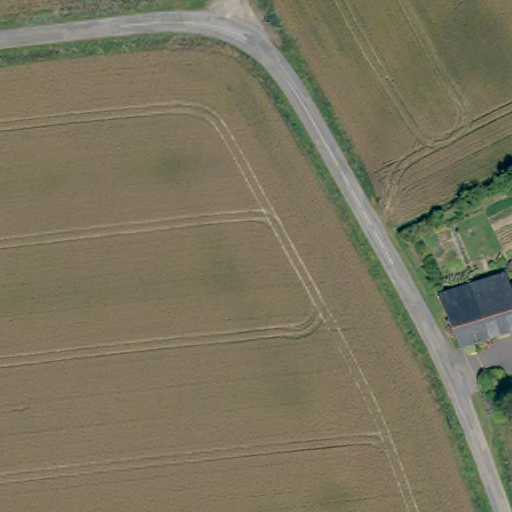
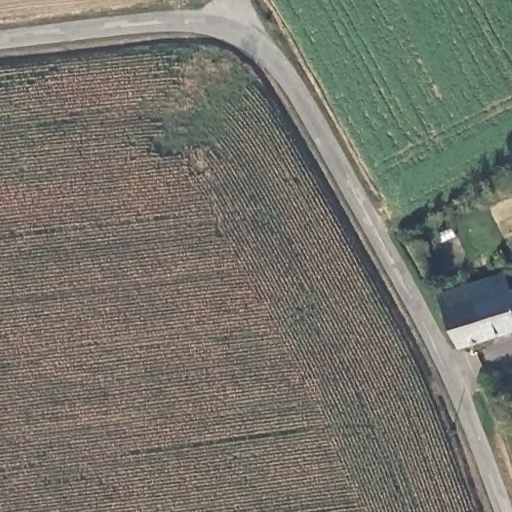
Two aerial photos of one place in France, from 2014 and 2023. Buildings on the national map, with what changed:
unchanged [(491,279),(497,297),(512,293),(512,333),(449,354),(426,301),(491,279)]

